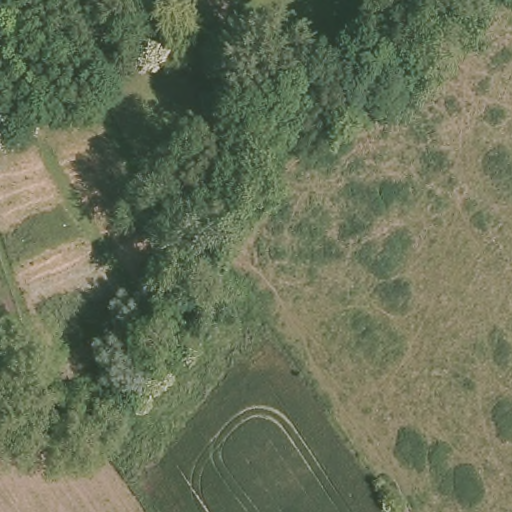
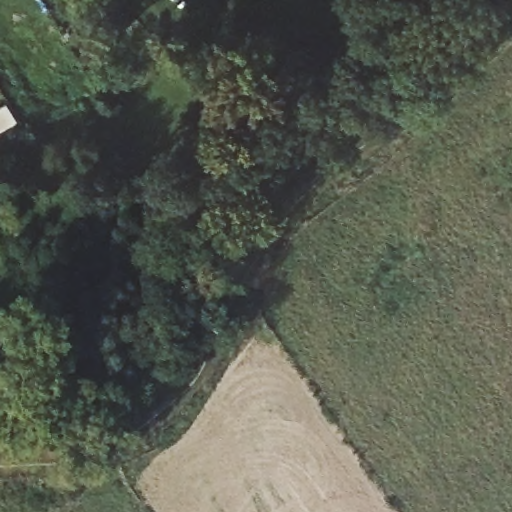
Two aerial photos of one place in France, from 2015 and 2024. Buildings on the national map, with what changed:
[]

